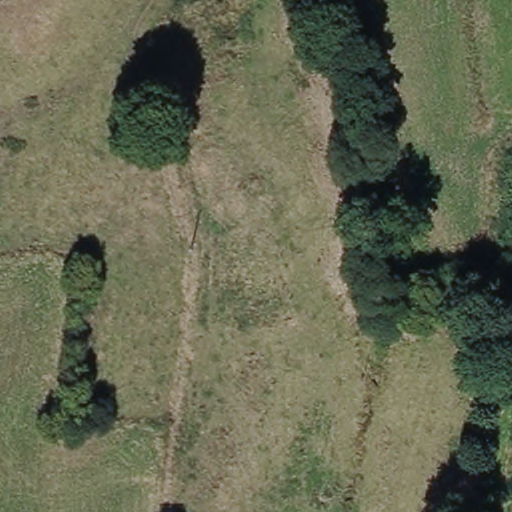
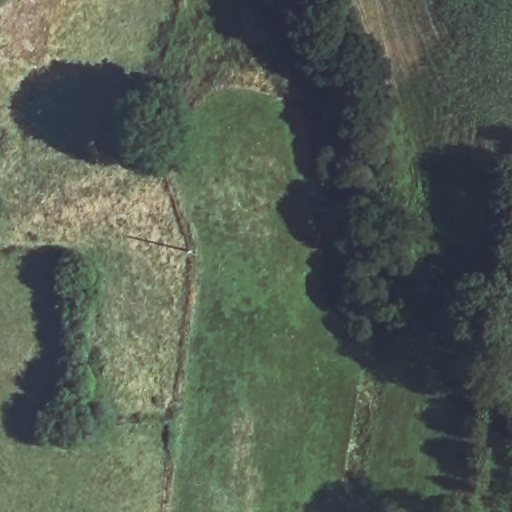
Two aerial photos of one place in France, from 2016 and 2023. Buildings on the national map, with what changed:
[]

